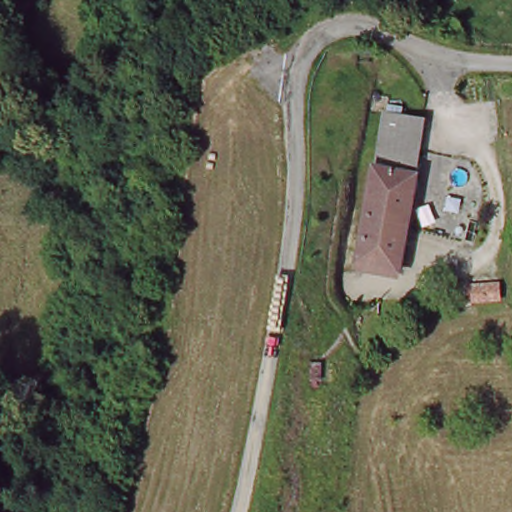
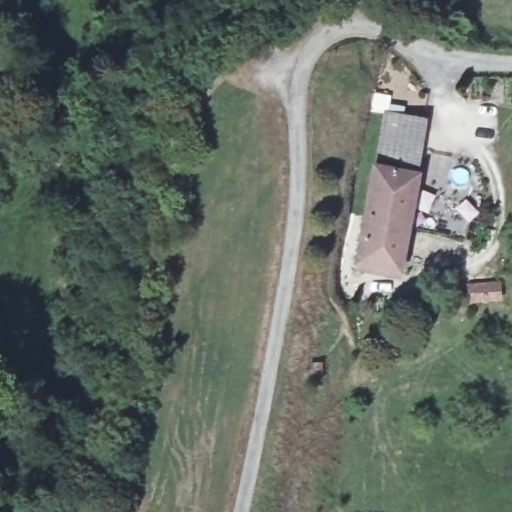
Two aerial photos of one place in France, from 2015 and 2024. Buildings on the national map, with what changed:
unchanged [(400,283),(352,273),(372,161),(377,161),(387,110),(425,118),(400,283)]

